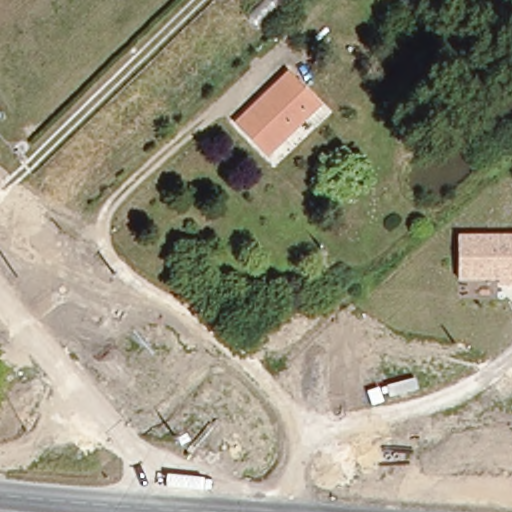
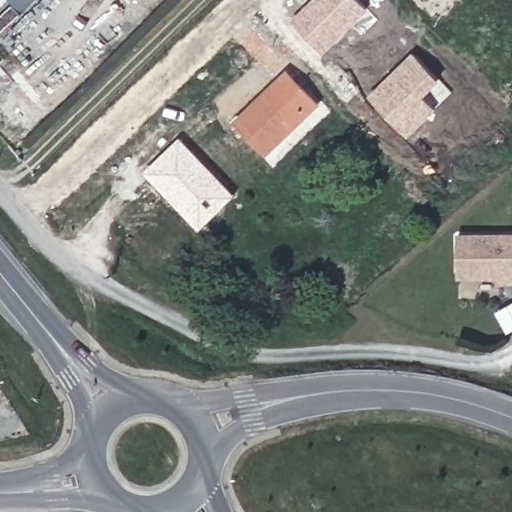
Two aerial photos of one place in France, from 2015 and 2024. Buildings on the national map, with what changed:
new [(11,0),(0,10),(0,0),(11,0)]
new [(38,0),(25,12),(13,0),(38,0)]
new [(312,0),(360,0),(370,9),(325,55),(291,20),(312,0)]
new [(14,5),(22,14),(0,35),(0,18),(14,5)]
new [(368,96),(415,52),(442,80),(427,97),(439,110),(410,138),(368,96)]
unchanged [(237,120),(287,73),(316,103),(267,151),(237,120)]
new [(200,230),(145,173),(182,137),(237,194),(200,230)]
unchanged [(495,279),(457,280),(457,234),(512,234),(512,283),(496,283),(495,279)]

